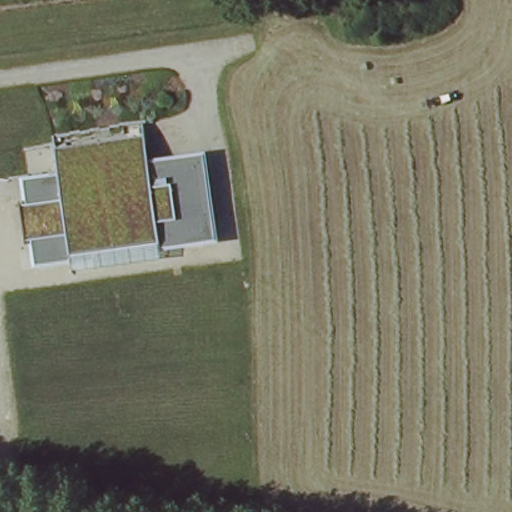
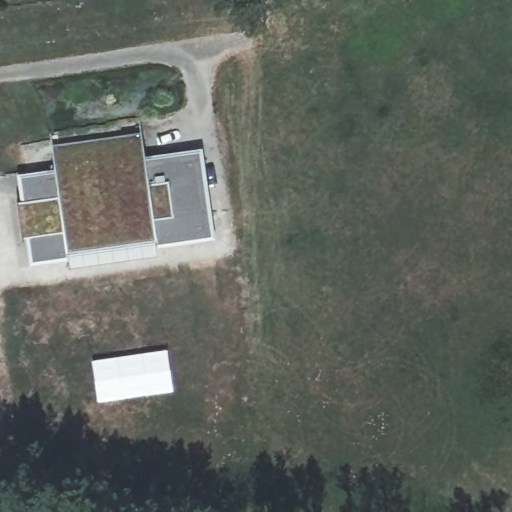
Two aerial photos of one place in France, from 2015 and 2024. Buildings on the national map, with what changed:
unchanged [(33,263),(16,177),(55,170),(50,145),(141,132),(148,161),(203,152),(217,240),(33,263)]
new [(167,348),(173,392),(98,403),(90,360),(167,348)]

